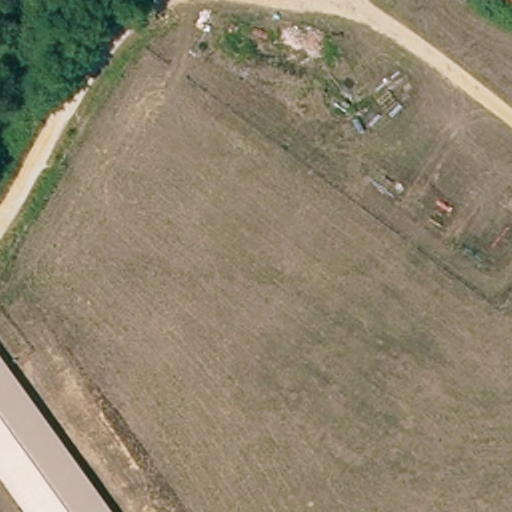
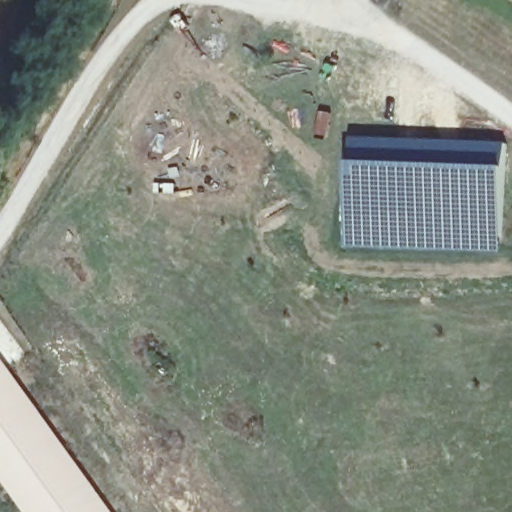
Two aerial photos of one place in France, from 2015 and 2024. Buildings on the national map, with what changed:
new [(352,136),(506,141),(509,166),(351,161),(352,136)]
new [(351,161),(509,166),(509,201),(504,254),(348,250),(351,161)]
unchanged [(0,478),(0,355),(112,512),(24,512),(0,478)]

